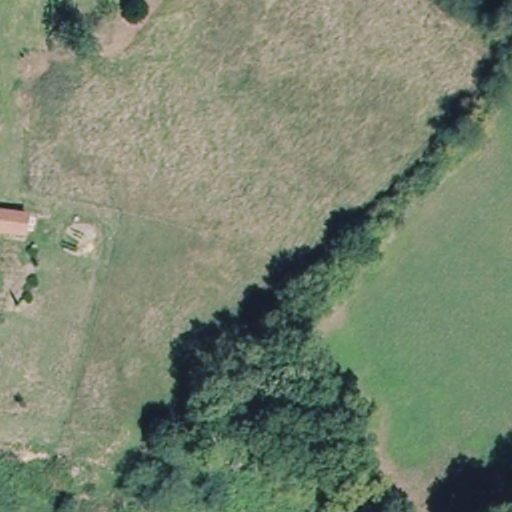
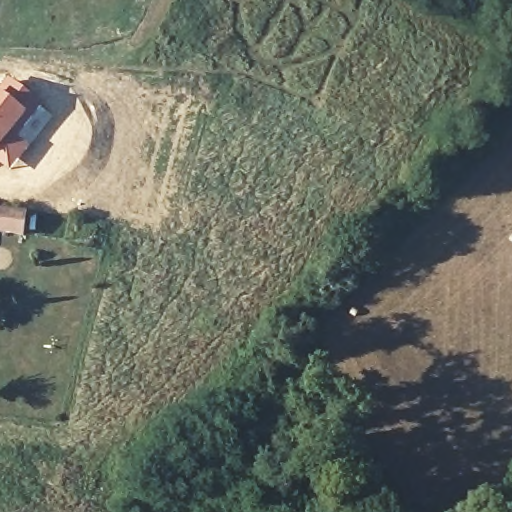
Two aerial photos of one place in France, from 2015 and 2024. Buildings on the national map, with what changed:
new [(9,80),(41,104),(18,134),(32,145),(12,175),(0,166),(0,90),(9,80)]
unchanged [(0,234),(0,211),(29,215),(27,238),(0,234)]

